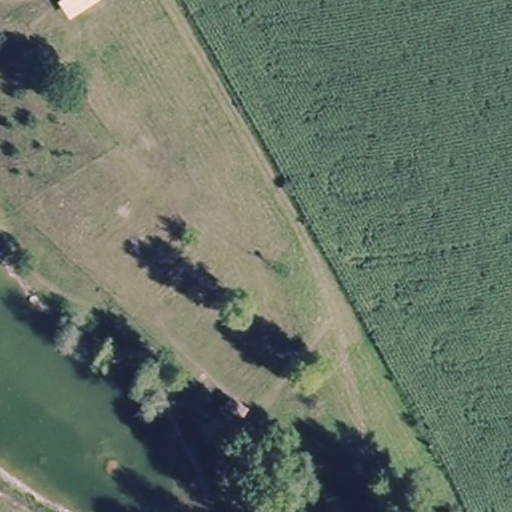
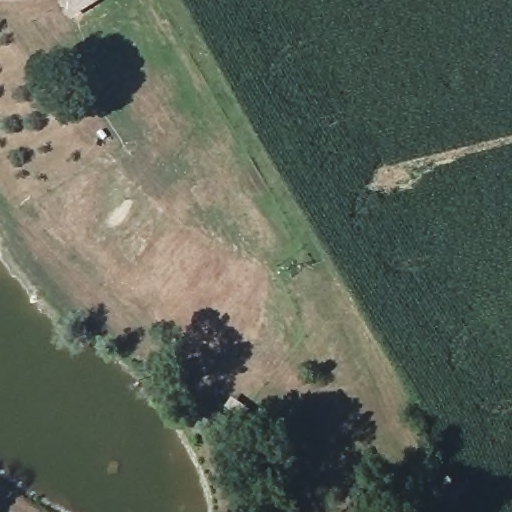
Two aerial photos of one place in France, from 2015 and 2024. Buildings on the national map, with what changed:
unchanged [(61,0),(102,0),(69,20),(58,2),(61,0)]

